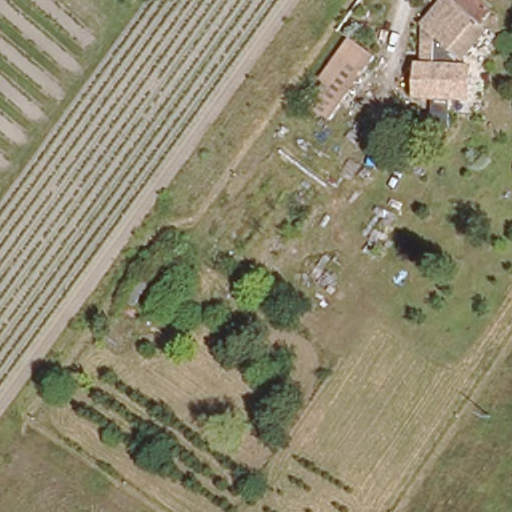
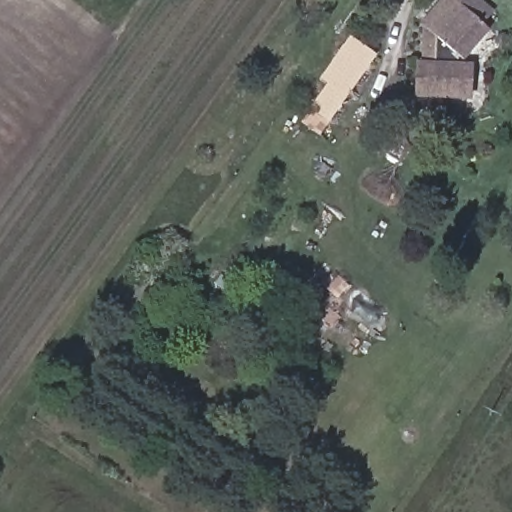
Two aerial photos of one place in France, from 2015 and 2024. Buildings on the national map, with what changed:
unchanged [(470,63),(431,32),(425,27),(447,0),(481,0),(496,12),(485,23),(495,31),(470,63)]
unchanged [(432,101),(426,101),(425,68),(431,67),(431,32),(470,63),(470,72),(477,72),(478,101),(450,101),(449,133),(422,132),(423,117),(431,118),(432,101)]
unchanged [(312,106),(330,82),(320,74),(348,34),(375,54),(330,119),(312,106)]

